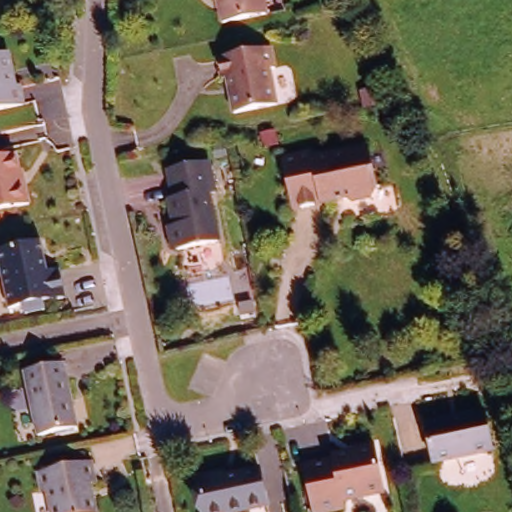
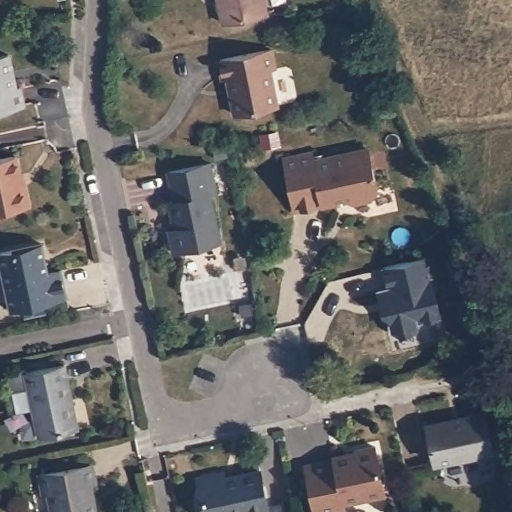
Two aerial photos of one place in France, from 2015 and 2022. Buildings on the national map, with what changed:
unchanged [(226,34),(219,0),(263,0),(269,25),(226,34)]
unchanged [(271,72),(265,74),(273,109),(229,117),(223,82),(219,83),(215,64),(266,53),(271,72)]
unchanged [(14,92),(18,92),(21,110),(0,115),(0,60),(7,59),(14,92)]
unchanged [(308,162),(363,152),(371,192),(365,202),(346,205),(338,200),(331,202),(331,204),(288,212),(277,159),(306,154),(308,162)]
unchanged [(0,213),(0,159),(15,156),(18,173),(23,172),(24,186),(28,206),(0,213)]
unchanged [(216,195),(209,197),(219,247),(178,256),(171,252),(167,237),(172,232),(166,204),(173,202),(168,175),(209,167),(216,195)]
unchanged [(43,275),(54,272),(60,299),(38,305),(39,312),(20,317),(18,309),(3,312),(0,299),(0,253),(35,245),(43,275)]
new [(427,317),(427,321),(422,322),(414,332),(399,336),(390,328),(388,313),(383,314),(378,288),(389,287),(384,266),(429,256),(442,315),(427,317)]
unchanged [(76,434),(38,443),(23,380),(62,371),(76,434)]
unchanged [(491,460),(432,468),(426,430),(485,421),(491,460)]
unchanged [(386,498),(345,507),(346,512),(315,512),(306,470),(351,461),(355,454),(376,450),(386,498)]
unchanged [(98,488),(94,490),(99,512),(53,512),(50,500),(47,501),(43,481),(95,470),(98,488)]
unchanged [(263,507),(241,512),(200,512),(194,483),(256,472),(263,507)]

